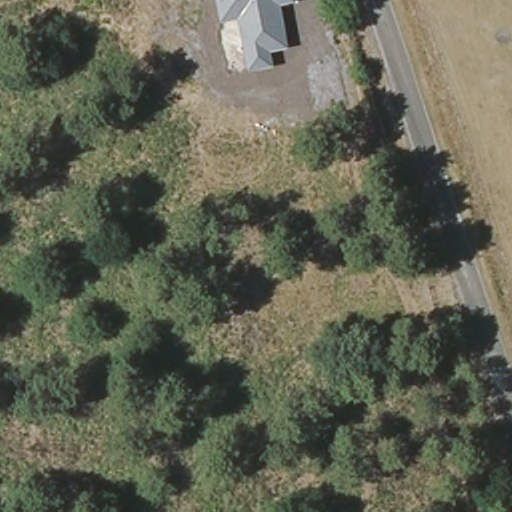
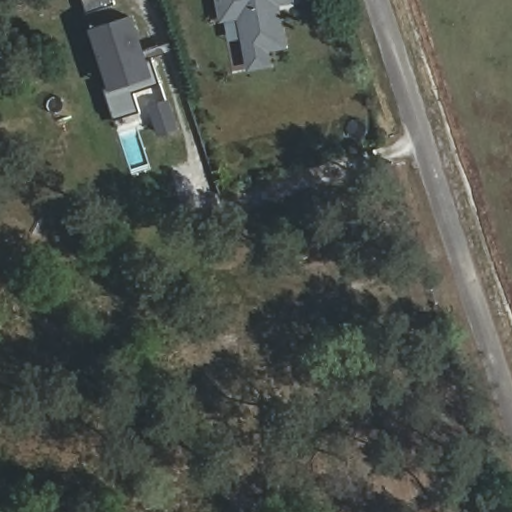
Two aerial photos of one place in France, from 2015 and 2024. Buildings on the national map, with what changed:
new [(88,13),(83,0),(112,0),(114,3),(88,13)]
unchanged [(296,2),(280,6),(288,49),(270,52),(273,68),(246,72),(237,20),(222,23),(216,0),(296,0),(296,2)]
new [(110,83),(92,30),(135,16),(156,84),(134,92),(140,112),(114,120),(103,85),(110,83)]
new [(151,106),(167,101),(177,129),(161,135),(151,106)]

